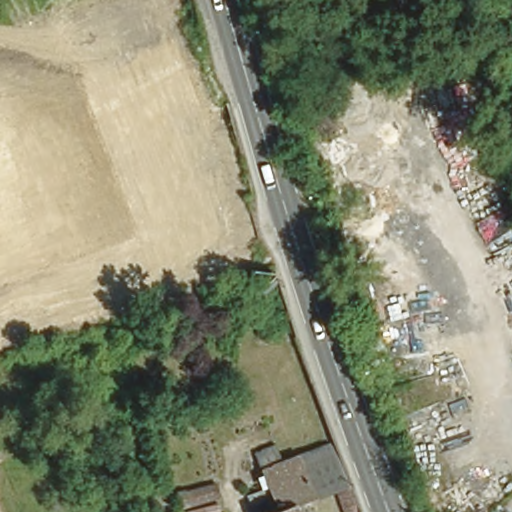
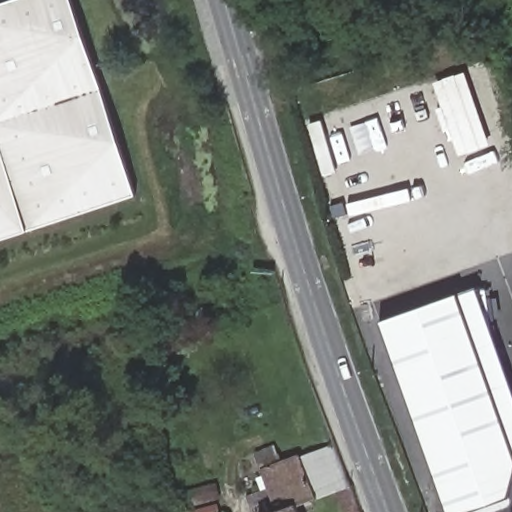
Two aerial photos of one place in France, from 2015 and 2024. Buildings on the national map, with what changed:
new [(136,195),(0,240),(0,4),(13,0),(72,0),(136,195)]
new [(512,448),(512,486),(509,498),(470,512),(447,512),(379,320),(458,293),(512,448)]
unchanged [(358,512),(341,512),(334,491),(292,505),(294,512),(267,512),(276,509),(256,470),(255,468),(267,463),(332,441),(333,443),(358,512)]
unchanged [(178,512),(174,491),(214,482),(220,512),(178,512)]

